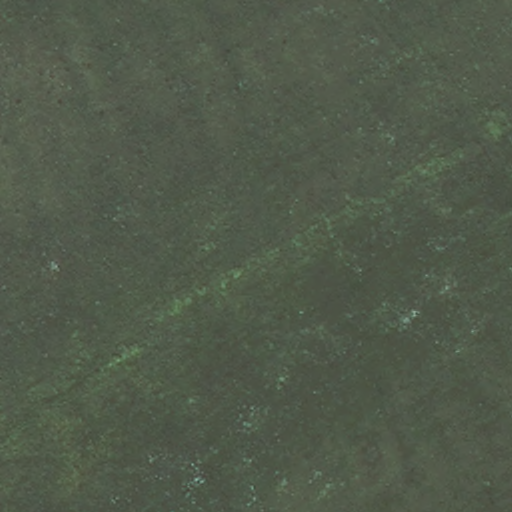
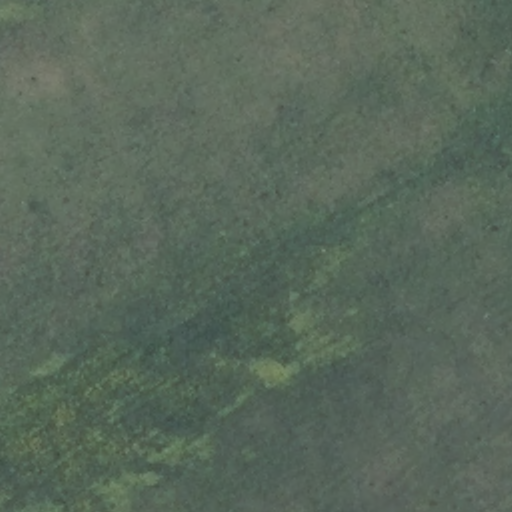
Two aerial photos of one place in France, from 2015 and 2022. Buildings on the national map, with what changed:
[]

